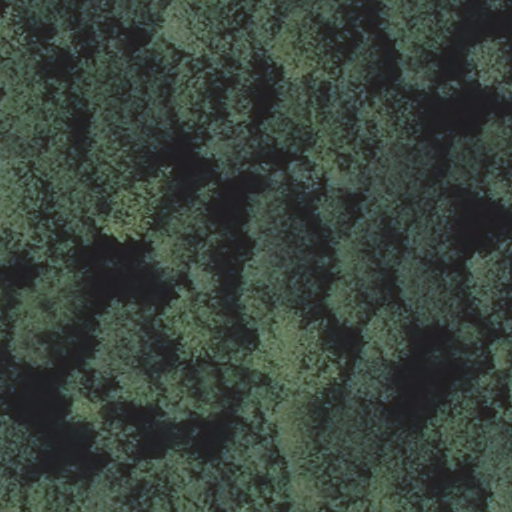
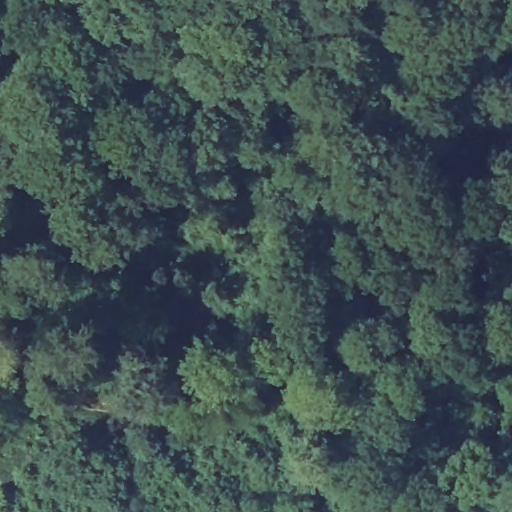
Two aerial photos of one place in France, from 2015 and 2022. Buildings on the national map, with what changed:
[]

